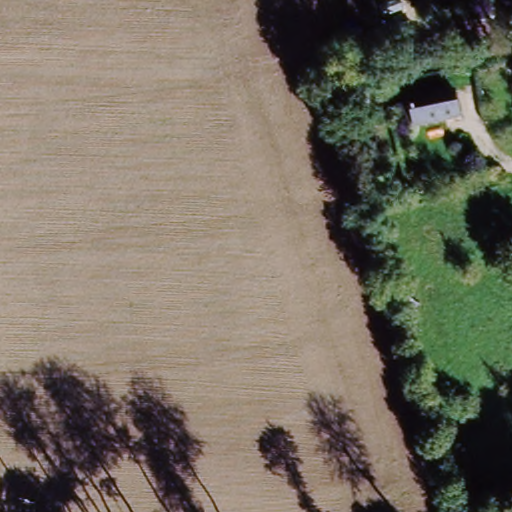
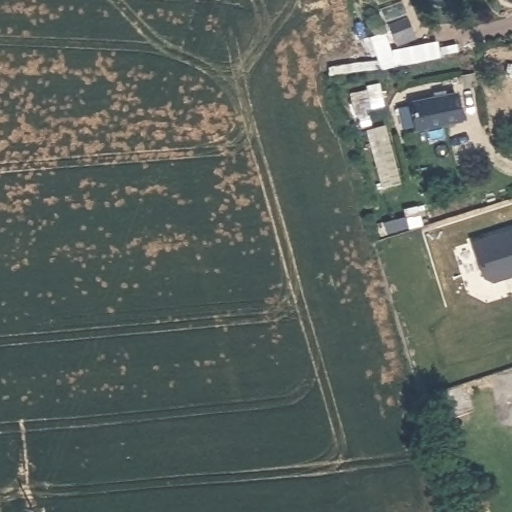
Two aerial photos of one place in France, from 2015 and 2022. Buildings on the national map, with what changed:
unchanged [(411,102),(456,94),(460,119),(415,127),(411,102)]
new [(512,230),(512,274),(490,281),(484,277),(472,243),(512,230)]

